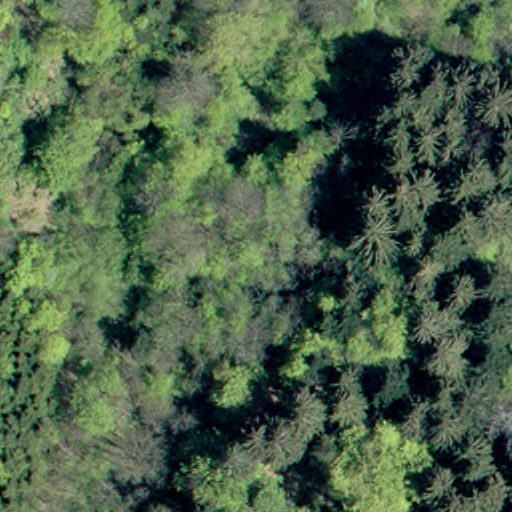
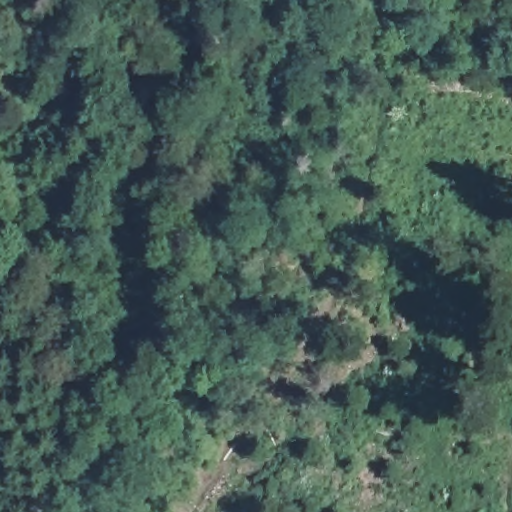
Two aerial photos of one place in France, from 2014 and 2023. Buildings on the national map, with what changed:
[]

